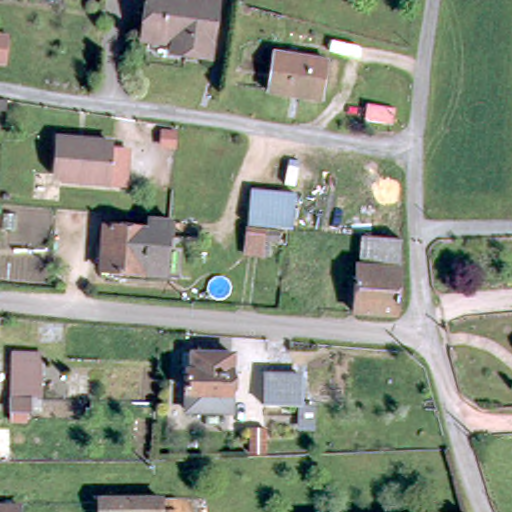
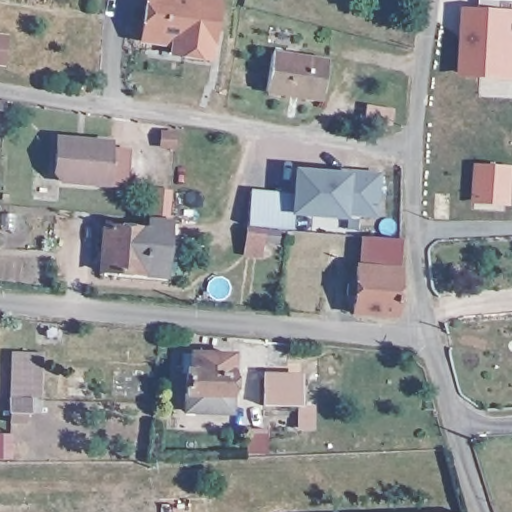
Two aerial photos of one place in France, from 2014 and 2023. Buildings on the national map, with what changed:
unchanged [(172,46),(142,42),(149,0),(218,0),(217,7),(210,62),(185,59),(171,57),(172,46)]
new [(459,8),(477,8),(478,0),(511,0),(511,9),(512,10),(512,80),(456,78),(459,8)]
unchanged [(11,43),(10,49),(6,70),(0,69),(0,41),(11,43)]
unchanged [(328,58),(322,96),(266,86),(272,48),(328,58)]
unchanged [(10,107),(9,116),(0,115),(0,105),(10,107)]
unchanged [(110,146),(107,187),(61,183),(55,176),(57,142),(110,146)]
new [(470,203),(472,164),(512,166),(512,174),(510,206),(470,203)]
new [(345,172),(378,175),(375,207),(343,203),(342,214),(294,210),(296,173),(346,176),(345,172)]
unchanged [(245,226),(248,192),(288,196),(284,230),(245,226)]
unchanged [(162,278),(97,272),(101,226),(143,230),(145,218),(167,220),(162,278)]
unchanged [(245,254),(247,228),(263,230),(278,231),(277,242),(262,241),(261,256),(245,254)]
unchanged [(398,243),(395,273),(357,269),(361,239),(398,243)]
unchanged [(398,273),(393,320),(351,316),(352,299),(344,298),(345,285),(355,286),(357,269),(395,273),(398,273)]
unchanged [(185,411),(185,405),(186,373),(182,373),(184,354),(191,355),(231,357),(231,370),(228,406),(228,414),(185,411)]
unchanged [(26,406),(11,406),(12,359),(40,360),(38,406),(37,420),(25,419),(5,419),(5,407),(26,407),(26,406)]
unchanged [(267,376),(303,378),(302,408),(266,407),(267,376)]
unchanged [(315,411),(315,432),(302,431),(302,410),(315,411)]
unchanged [(267,457),(251,457),(251,433),(251,431),(266,431),(266,434),(267,457)]
new [(10,437),(10,464),(0,464),(0,437),(10,437)]
unchanged [(164,512),(103,512),(103,499),(164,498),(164,512)]
unchanged [(0,512),(0,502),(30,502),(29,512),(0,512)]

